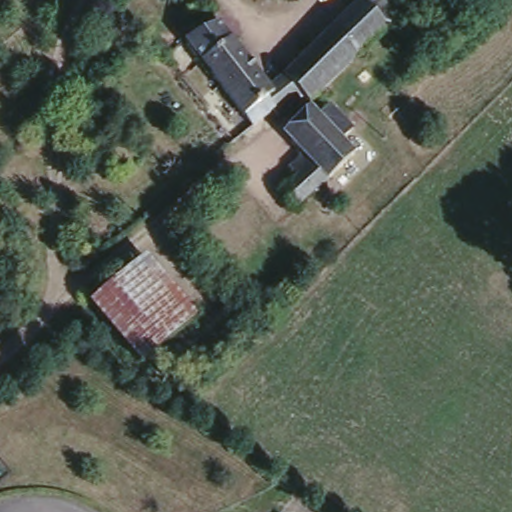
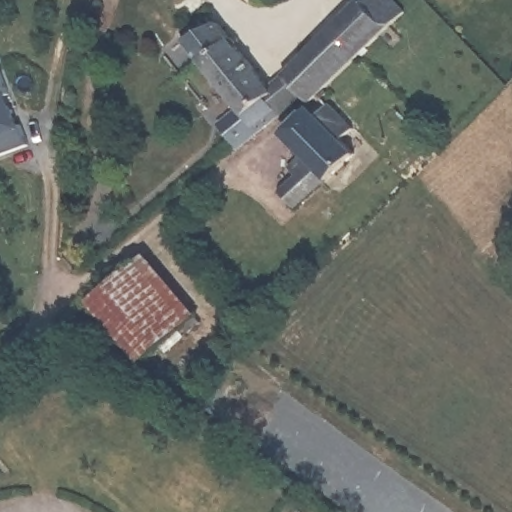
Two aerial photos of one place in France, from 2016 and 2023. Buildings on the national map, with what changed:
unchanged [(322,98),(316,104),(309,98),(285,77),(352,1),(351,0),(392,0),(401,8),(322,98)]
unchanged [(178,40),(213,18),(275,90),(266,98),(272,105),(262,115),(266,120),(254,131),(178,40)]
new [(28,144),(0,155),(0,63),(0,62),(28,144)]
unchanged [(285,77),(309,98),(287,122),(277,111),(266,120),(262,115),(272,105),(266,98),(275,90),(285,77)]
unchanged [(351,144),(368,158),(312,221),(296,206),(312,188),(299,177),(312,163),(296,149),(323,119),(351,144)]
unchanged [(197,314),(140,364),(132,355),(86,304),(144,254),(191,307),(197,314)]

